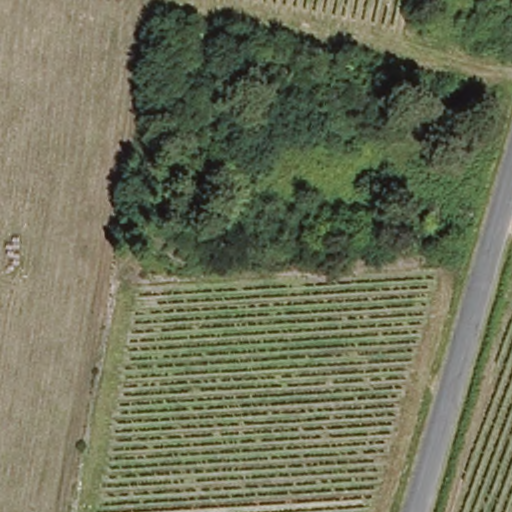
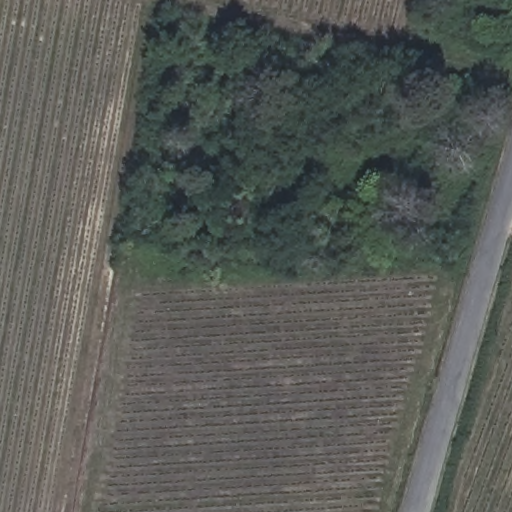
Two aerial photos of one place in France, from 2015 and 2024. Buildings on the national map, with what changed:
[]

